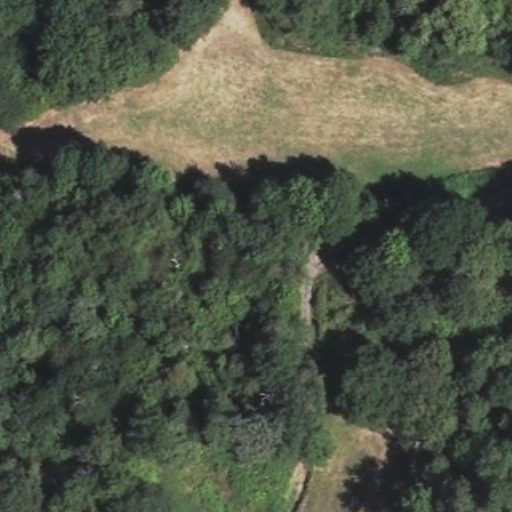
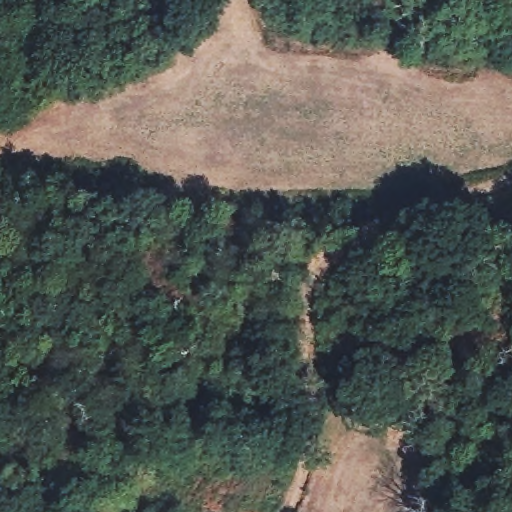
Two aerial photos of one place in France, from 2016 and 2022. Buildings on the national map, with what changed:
[]

